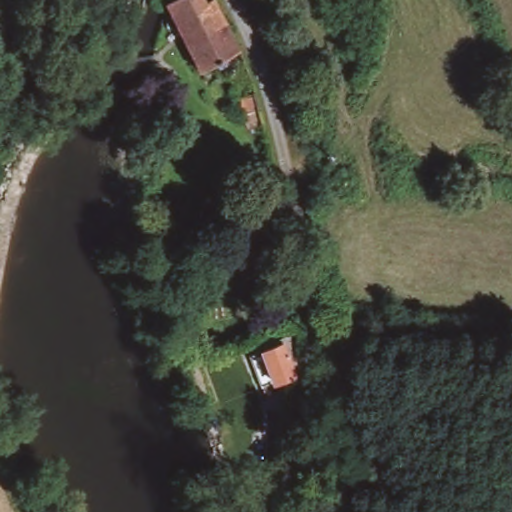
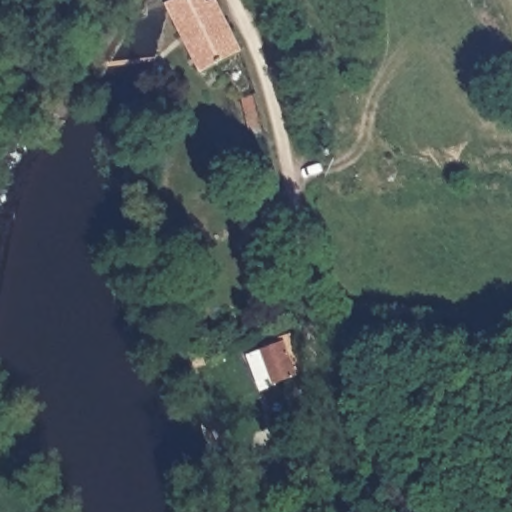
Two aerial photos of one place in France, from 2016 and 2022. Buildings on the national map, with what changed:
unchanged [(246,49),(205,71),(170,2),(174,0),(225,0),(246,46),(246,49)]
unchanged [(261,127),(249,133),(240,101),(252,96),(261,127)]
unchanged [(295,376),(294,378),(271,388),(260,351),(267,348),(266,343),(294,334),(292,350),(298,351),(295,376)]

